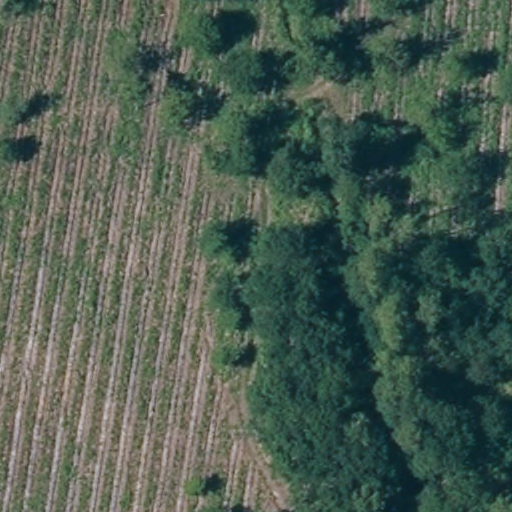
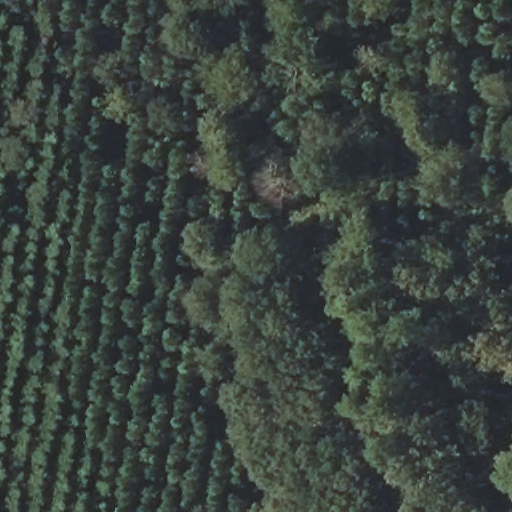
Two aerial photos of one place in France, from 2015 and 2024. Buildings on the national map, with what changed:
[]

